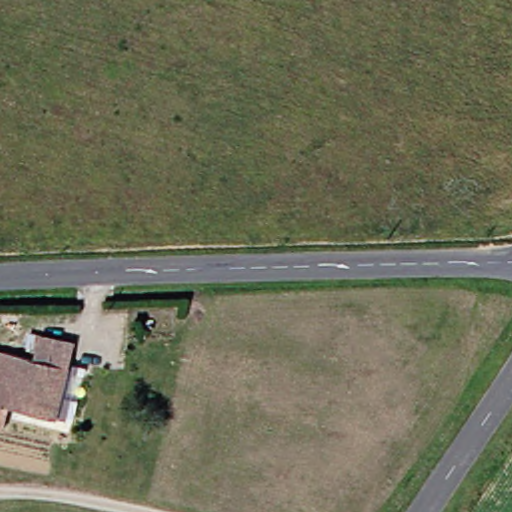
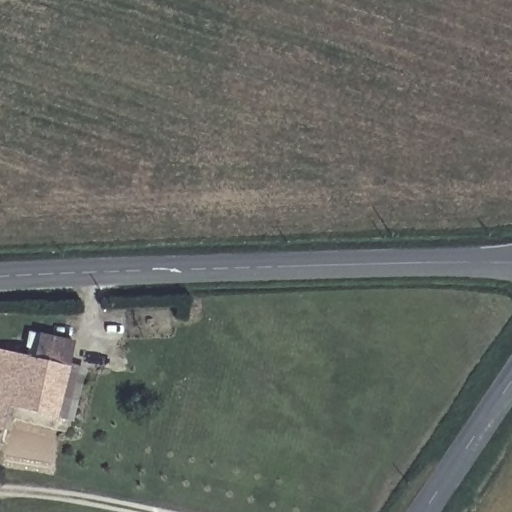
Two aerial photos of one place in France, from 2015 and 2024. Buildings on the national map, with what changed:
unchanged [(59,397),(52,418),(0,401),(0,346),(21,352),(23,345),(15,342),(20,326),(63,340),(56,362),(69,365),(59,397)]

